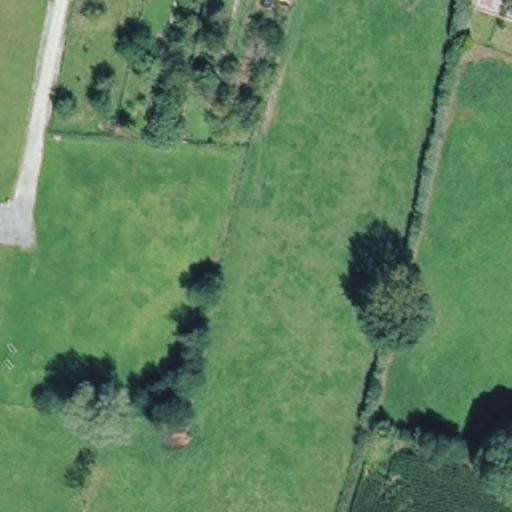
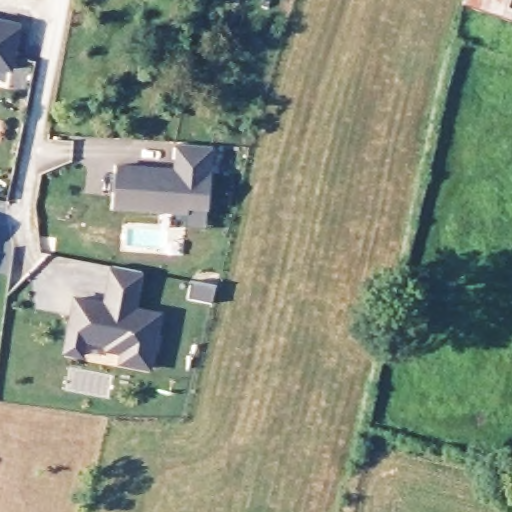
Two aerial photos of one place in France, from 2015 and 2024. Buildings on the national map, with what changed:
demolished [(512,20),(460,2),(460,0),(512,0),(512,20)]
new [(512,8),(512,11),(505,25),(485,18),(492,0),(512,8)]
new [(21,26),(13,67),(0,64),(0,22),(21,26)]
new [(182,232),(184,217),(111,211),(115,170),(172,175),(175,150),(209,152),(204,214),(201,235),(182,232)]
new [(65,350),(68,335),(76,296),(100,301),(106,302),(114,265),(143,270),(135,308),(160,313),(156,335),(159,336),(156,350),(153,349),(149,368),(120,362),(122,351),(107,348),(108,343),(85,338),(82,354),(65,350)]
new [(211,291),(207,309),(181,304),(185,285),(211,291)]

